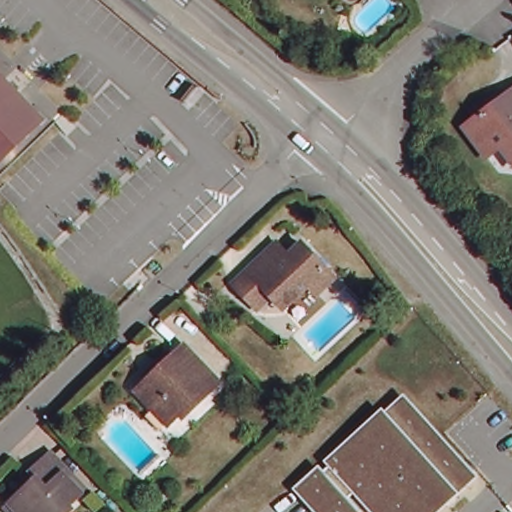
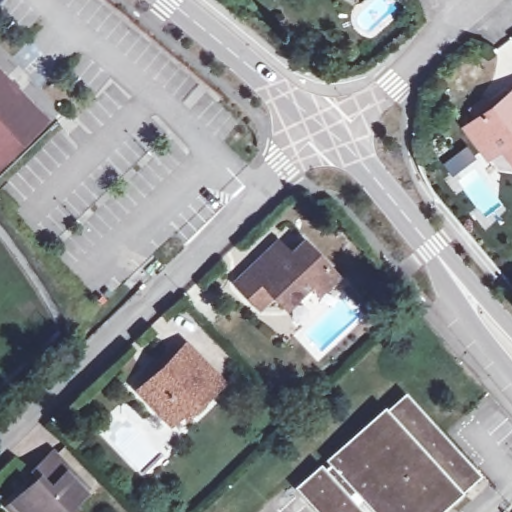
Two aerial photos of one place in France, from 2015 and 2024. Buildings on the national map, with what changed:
unchanged [(41,118),(0,157),(0,75),(41,118)]
unchanged [(484,156),(462,126),(473,117),(467,109),(481,98),(487,107),(512,88),(512,163),(499,145),(484,156)]
unchanged [(337,281),(320,297),(312,289),(287,313),(275,300),(260,314),(235,288),(267,258),(277,247),(290,260),(305,246),(337,281)]
unchanged [(181,412),(169,423),(138,390),(185,345),(220,382),(207,394),(185,416),(181,412)]
unchanged [(479,478),(460,495),(441,512),(373,512),(355,493),(349,499),(360,512),(316,512),(294,489),(320,466),(325,461),(384,409),(404,394),(479,478)]
unchanged [(10,501),(37,476),(32,471),(53,452),(74,474),(72,477),(85,490),(61,512),(10,512),(5,505),(10,501)]

